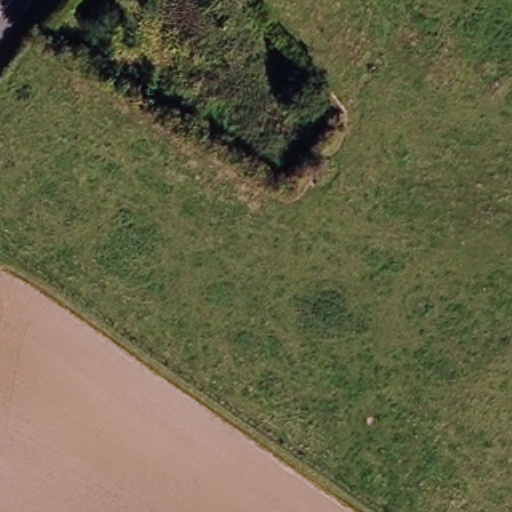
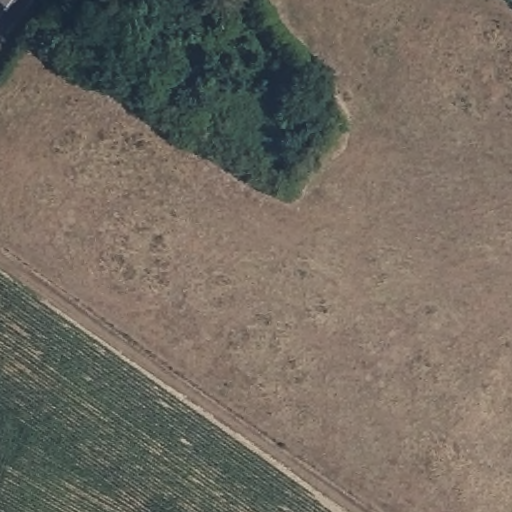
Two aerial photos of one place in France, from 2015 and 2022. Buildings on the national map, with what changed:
unchanged [(83,19),(108,35),(104,41),(115,49),(96,79),(71,63),(75,55),(66,48),(83,19)]

